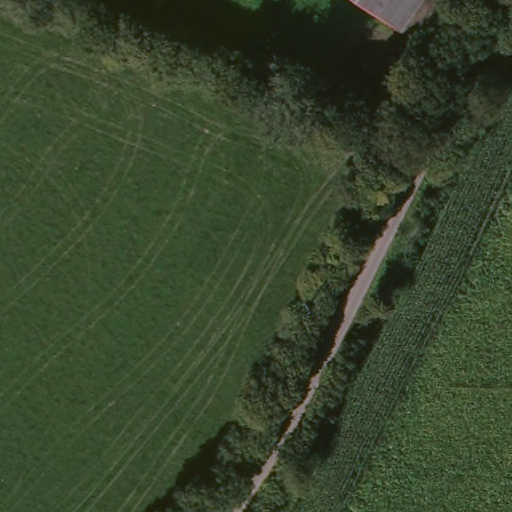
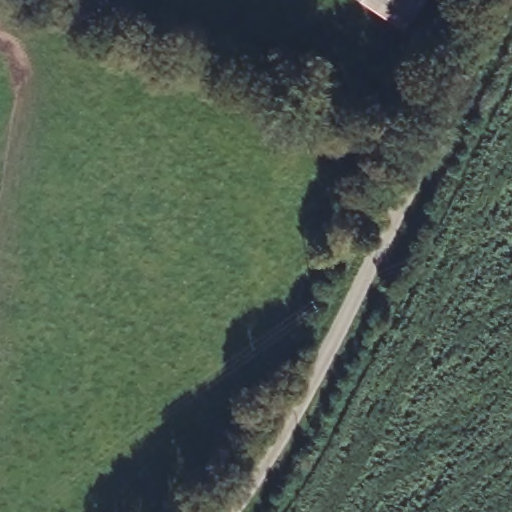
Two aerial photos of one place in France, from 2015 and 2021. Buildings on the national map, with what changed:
unchanged [(402,0),(392,13),(373,0),(402,0)]

